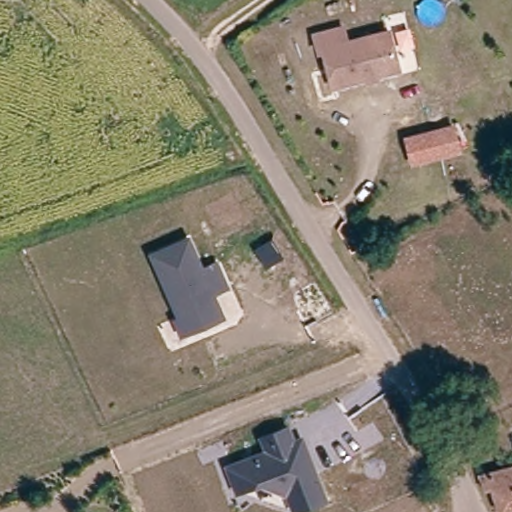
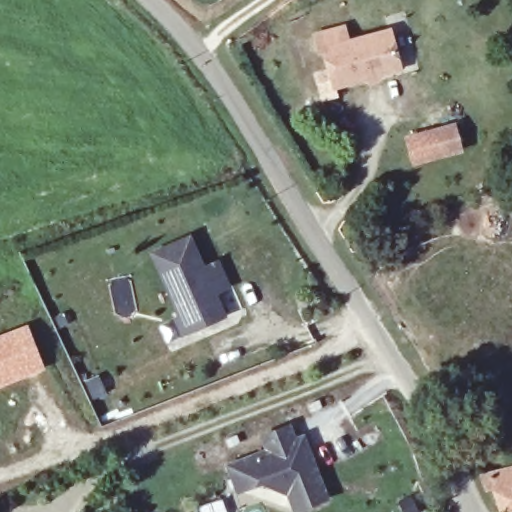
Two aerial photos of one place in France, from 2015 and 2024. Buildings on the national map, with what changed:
unchanged [(394,56),(388,67),(330,83),(320,45),(315,47),(311,30),(339,22),(344,37),(386,26),(394,56)]
unchanged [(392,134),(422,126),(438,123),(444,149),(427,152),(397,159),(392,134)]
unchanged [(172,319),(175,317),(146,252),(190,233),(203,263),(217,256),(229,286),(218,291),(225,315),(181,336),(172,319)]
new [(45,367),(0,386),(0,334),(28,322),(45,367)]
unchanged [(225,463),(264,447),(259,433),(289,421),(294,436),(304,432),(330,500),(299,512),(293,512),(287,495),(262,483),(238,493),(225,463)]
unchanged [(512,467),(512,512),(510,512),(500,512),(494,488),(482,491),(477,476),(488,473),(512,467)]

